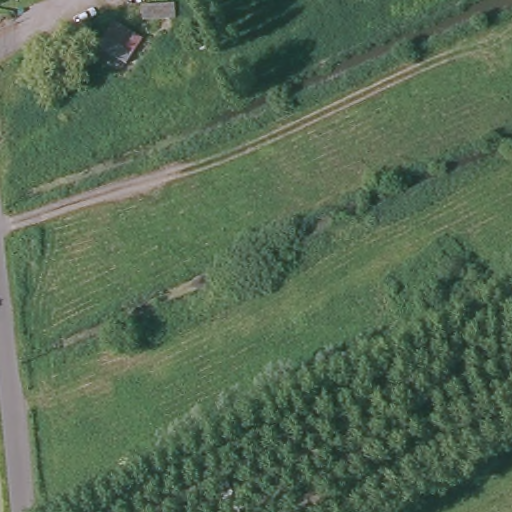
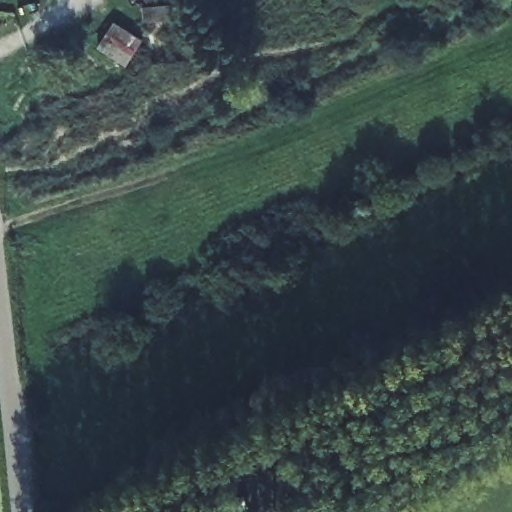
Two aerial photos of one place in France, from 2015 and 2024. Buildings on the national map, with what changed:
unchanged [(167,13),(134,16),(133,1),(144,0),(165,0),(167,13)]
unchanged [(143,40),(129,63),(99,45),(114,24),(143,40)]

